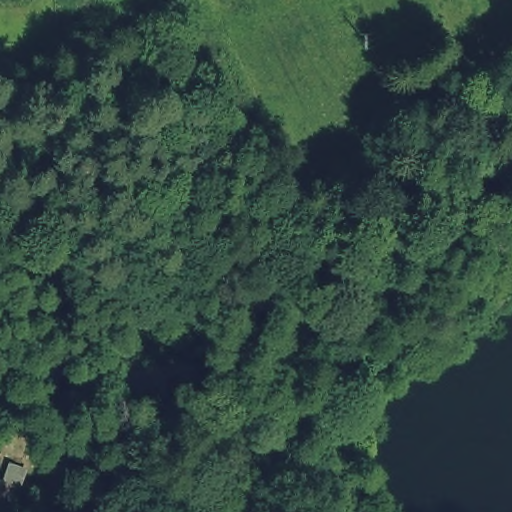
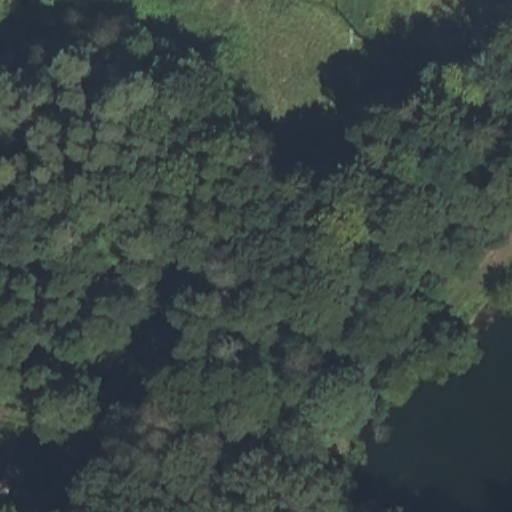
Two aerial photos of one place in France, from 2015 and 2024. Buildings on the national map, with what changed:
unchanged [(110,58),(75,59),(78,4),(114,4),(110,58)]

